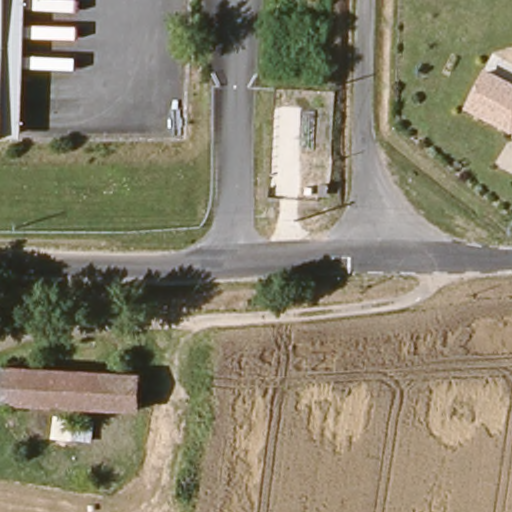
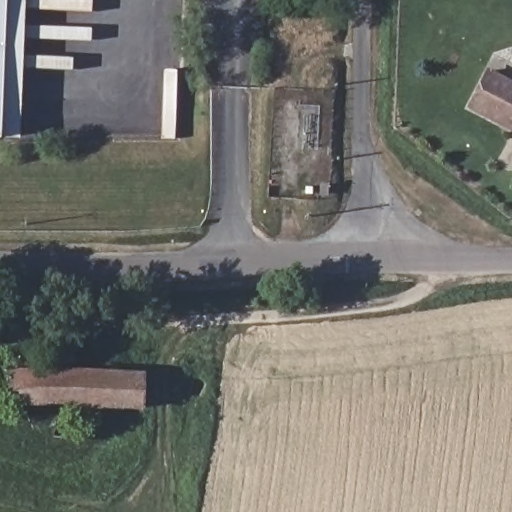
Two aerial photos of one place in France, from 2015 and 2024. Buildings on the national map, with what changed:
unchanged [(9,139),(0,139),(0,0),(12,0),(9,139)]
unchanged [(488,69),(512,82),(512,127),(469,104),(488,69)]
unchanged [(141,410),(121,409),(2,402),(4,370),(29,371),(143,376),(141,410)]

